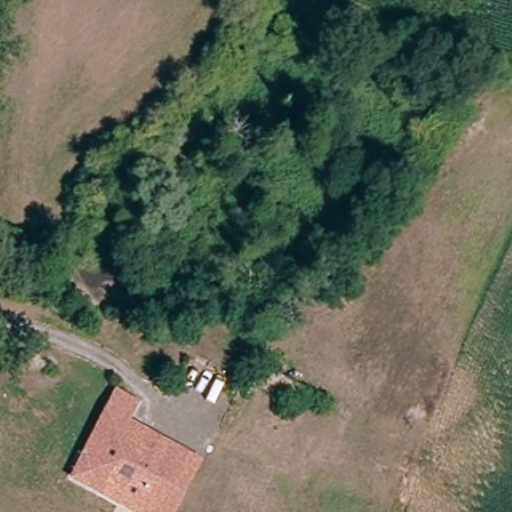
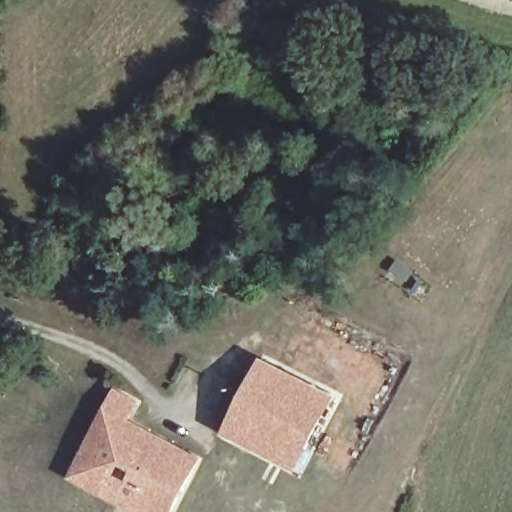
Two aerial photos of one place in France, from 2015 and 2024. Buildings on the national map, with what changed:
new [(222,435),(262,358),(337,397),(297,474),(222,435)]
demolished [(295,465),(255,447),(232,437),(240,418),(201,405),(194,421),(175,412),(187,382),(247,400),(262,370),(327,401),(295,465)]
unchanged [(186,455),(156,512),(125,512),(66,483),(114,391),(139,405),(129,424),(186,455)]

